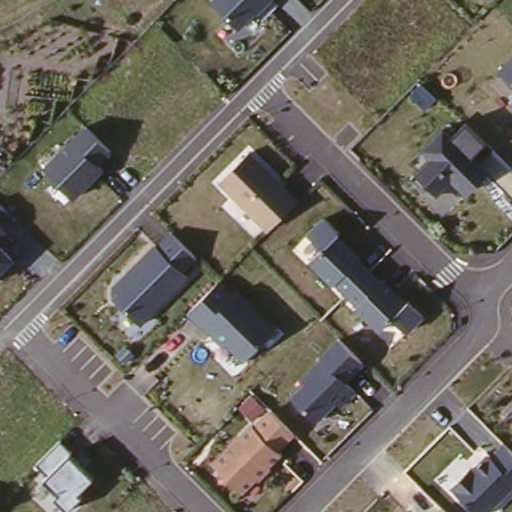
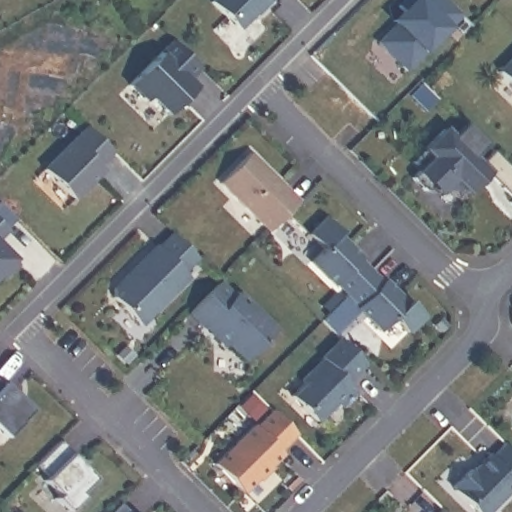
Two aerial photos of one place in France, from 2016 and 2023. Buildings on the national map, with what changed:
unchanged [(275,0),(244,30),(214,1),(214,0),(275,0)]
new [(397,4),(401,0),(446,0),(460,15),(404,69),(377,41),(406,13),(397,4)]
new [(175,36),(199,61),(184,74),(195,84),(169,107),(152,89),(147,95),(131,79),(175,36)]
unchanged [(512,82),(499,69),(512,56),(512,82)]
unchanged [(418,148),(443,125),(453,135),(465,122),(485,142),(473,153),(483,162),(493,154),(512,170),(512,196),(485,172),(465,194),(450,185),(438,192),(434,189),(425,190),(412,178),(416,172),(409,164),(422,152),(418,148)]
unchanged [(85,126),(111,151),(99,164),(105,170),(76,198),(44,168),(85,126)]
unchanged [(252,148),(305,200),(272,234),(218,182),(252,148)]
unchanged [(17,222),(0,242),(0,205),(17,222)]
unchanged [(324,248),(307,232),(322,217),(340,234),(337,236),(360,258),(384,280),(408,301),(423,317),(409,331),(392,316),(380,329),(358,310),(361,307),(311,262),(324,248)]
unchanged [(150,247),(158,247),(171,234),(197,257),(184,271),(188,277),(141,323),(109,292),(150,247)]
unchanged [(15,260),(0,275),(0,244),(15,260)]
unchanged [(218,280),(232,295),(238,291),(276,327),(244,360),(209,329),(207,331),(188,312),(218,280)]
unchanged [(305,380),(300,377),(335,338),(364,364),(348,382),(357,393),(346,407),(336,402),(320,420),(291,395),(305,380)]
new [(1,378),(5,375),(17,389),(21,385),(35,400),(7,429),(0,421),(0,378),(1,378)]
unchanged [(252,422),(239,408),(251,394),(268,408),(294,435),(279,448),(280,453),(268,465),(274,470),(245,493),(214,461),(252,422)]
unchanged [(61,442),(74,452),(70,456),(93,477),(78,494),(81,497),(68,509),(57,498),(60,492),(46,478),(38,465),(61,442)]
unchanged [(494,455),(505,445),(512,452),(512,488),(486,512),(479,512),(452,488),(489,451),(494,455)]
new [(119,498),(132,512),(105,512),(119,498)]
new [(136,508),(139,512),(132,512),(136,508)]

